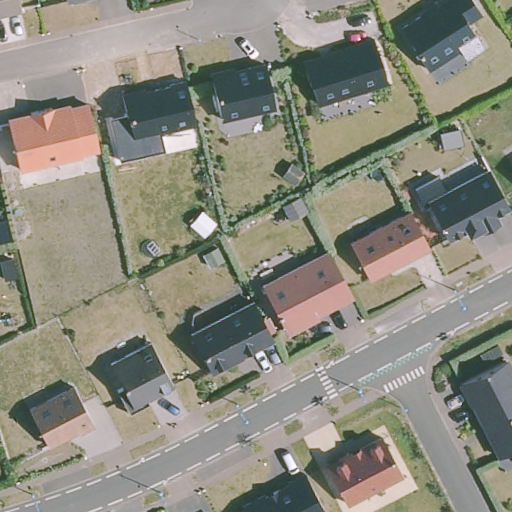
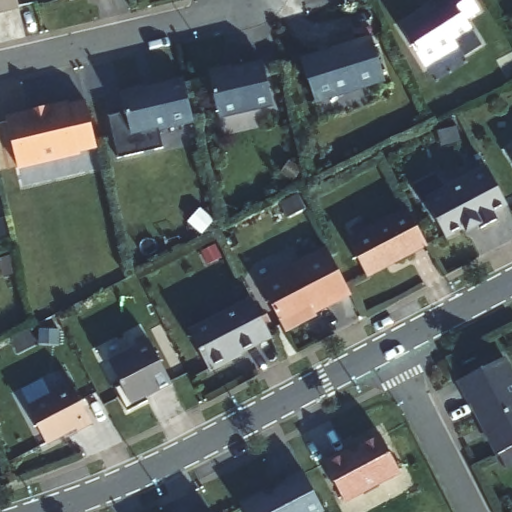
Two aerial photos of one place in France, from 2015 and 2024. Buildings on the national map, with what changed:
unchanged [(21,7),(0,12),(0,0),(19,0),(21,7)]
unchanged [(71,1),(70,0),(73,0),(71,1)]
unchanged [(476,11),(462,20),(479,44),(461,56),(455,47),(422,67),(407,45),(408,44),(397,27),(432,5),(430,2),(432,0),(469,0),(476,11)]
unchanged [(353,46),(352,44),(369,38),(383,79),(314,102),(307,84),(306,84),(300,65),(353,46)]
unchanged [(214,119),(203,75),(226,69),(227,73),(241,70),(241,69),(262,64),(272,106),(214,119)]
unchanged [(194,121),(159,127),(159,129),(132,134),(127,112),(126,112),(122,93),(141,89),(145,91),(155,89),(155,87),(170,84),(169,82),(184,79),(194,121)]
unchanged [(92,127),(97,146),(79,151),(80,153),(18,167),(7,119),(30,113),(30,112),(51,107),(51,108),(69,104),(69,107),(87,102),(92,127)]
unchanged [(488,167),(507,204),(492,212),(496,221),(481,229),(479,224),(467,230),(465,226),(445,236),(426,201),(488,167)]
unchanged [(414,221),(427,246),(370,275),(367,277),(367,276),(349,241),(409,210),(414,221)]
unchanged [(345,283),(351,294),(316,313),(317,316),(286,332),(272,306),(261,284),(327,250),(345,283)]
unchanged [(257,310),(261,316),(271,336),(230,357),(231,359),(210,371),(190,332),(196,329),(252,300),(257,310)]
unchanged [(152,342),(174,382),(147,397),(150,401),(130,411),(117,387),(124,384),(112,361),(140,346),(152,340),(152,342)]
unchanged [(512,368),(512,447),(501,452),(474,401),(472,402),(461,380),(506,356),(512,368)]
unchanged [(93,426),(78,433),(77,430),(47,446),(29,410),(73,387),(93,426)]
unchanged [(346,450),(347,452),(380,434),(397,472),(344,500),(324,462),(346,450)]
unchanged [(321,512),(244,512),(240,504),(262,492),(262,493),(286,482),(285,480),(303,471),(324,511),(321,512)]

